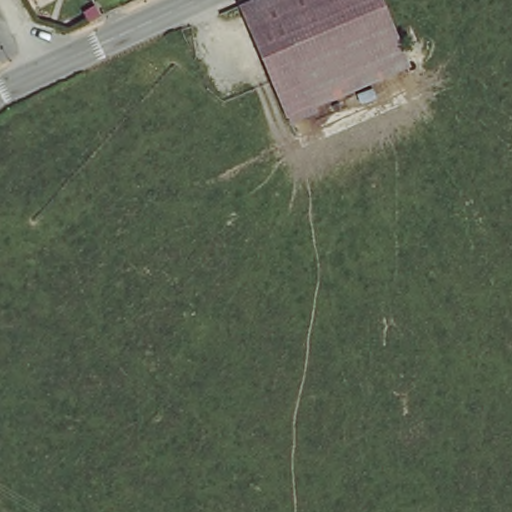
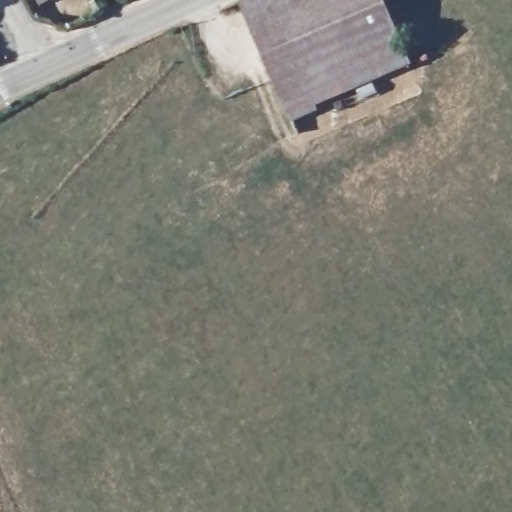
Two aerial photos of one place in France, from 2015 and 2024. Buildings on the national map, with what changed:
unchanged [(43,4),(41,0),(49,0),(43,4)]
unchanged [(406,69),(316,106),(321,117),(295,127),(245,6),(259,0),(378,0),(406,69)]

